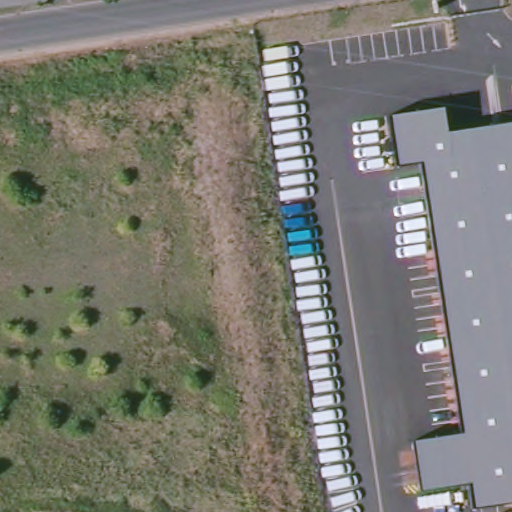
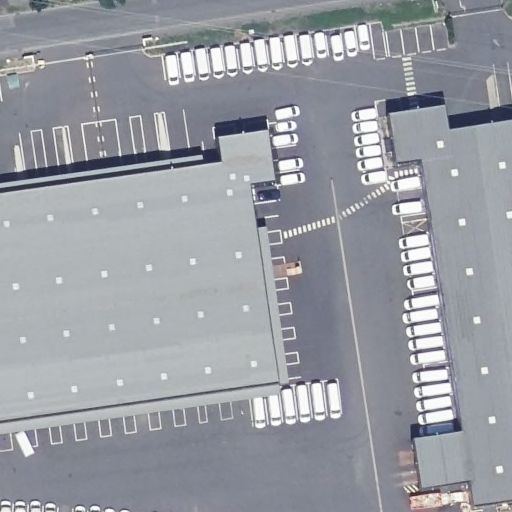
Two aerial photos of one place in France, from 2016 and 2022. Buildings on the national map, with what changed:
unchanged [(442,109),(445,134),(512,123),(512,504),(471,510),(468,486),(419,493),(411,442),(460,435),(420,165),(394,169),(387,117),(442,109)]
new [(250,188),(277,385),(0,423),(0,196),(220,166),(216,140),(267,132),(274,185),(250,188)]

